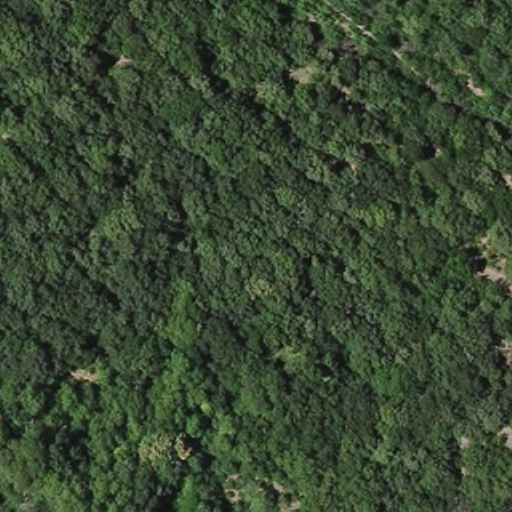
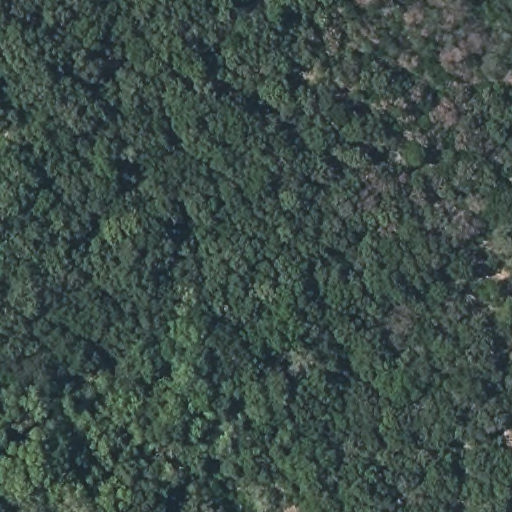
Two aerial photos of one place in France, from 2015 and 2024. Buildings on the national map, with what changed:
unchanged [(270,3),(272,2),(292,16),(292,20),(282,32),(262,17),(270,3)]
unchanged [(101,24),(109,10),(121,17),(113,32),(101,24)]

